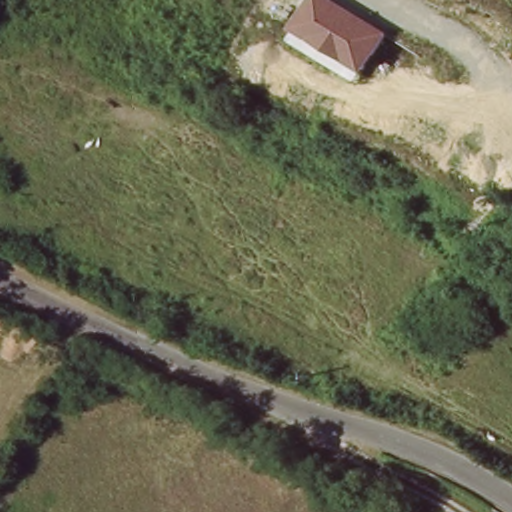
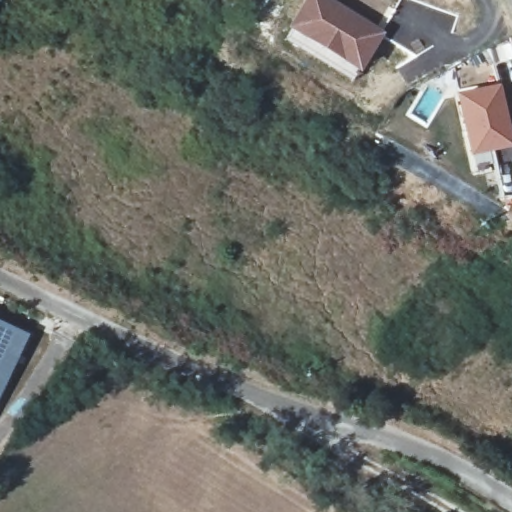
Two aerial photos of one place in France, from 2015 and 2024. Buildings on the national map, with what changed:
unchanged [(290,27),(308,0),(327,0),(385,33),(362,72),(290,27)]
new [(512,128),(512,147),(492,152),(495,168),(472,174),(454,92),(502,82),(512,128)]
new [(31,335),(0,401),(0,321),(31,335)]

